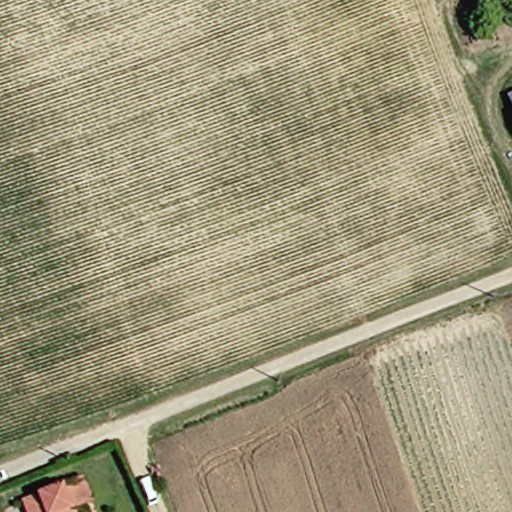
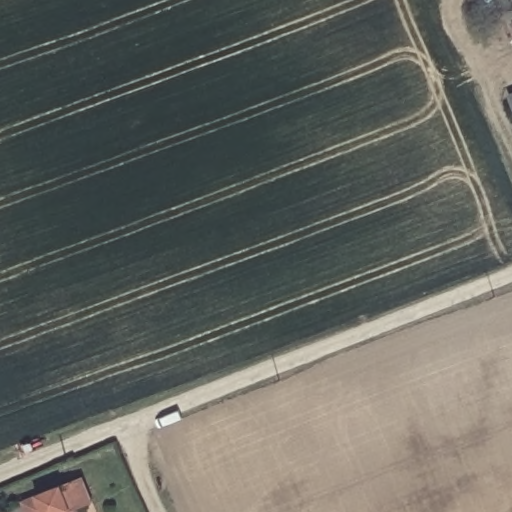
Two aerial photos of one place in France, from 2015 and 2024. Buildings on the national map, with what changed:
unchanged [(90,476),(100,500),(85,506),(87,512),(35,512),(31,502),(90,476)]

